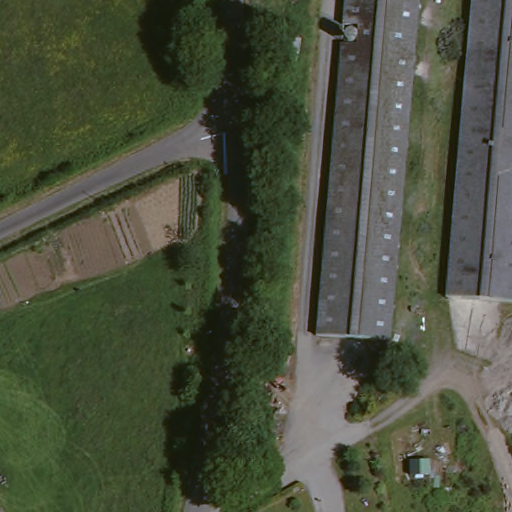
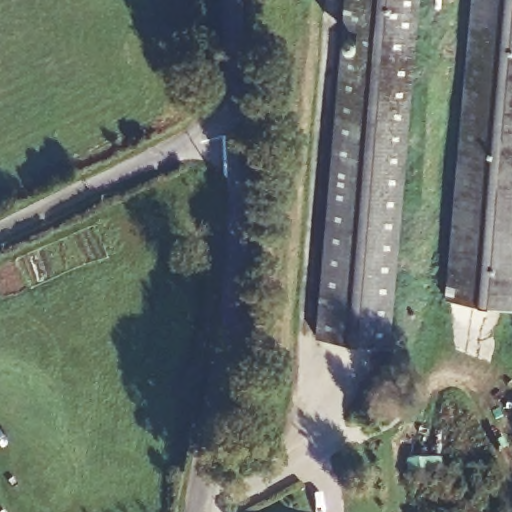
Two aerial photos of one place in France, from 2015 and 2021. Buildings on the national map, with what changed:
unchanged [(344,0),(419,0),(397,357),(322,351),(344,0)]
unchanged [(446,299),(473,0),(512,0),(512,304),(446,299)]

